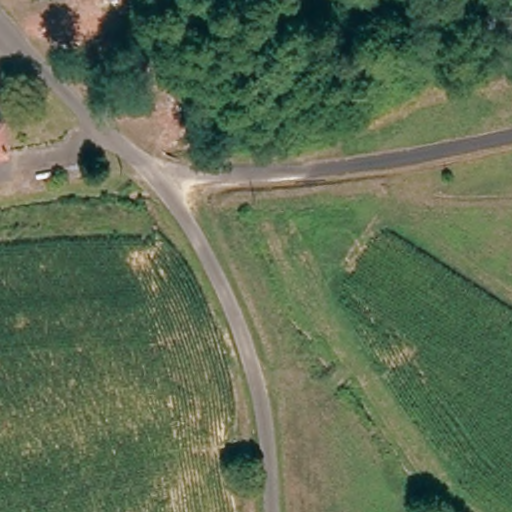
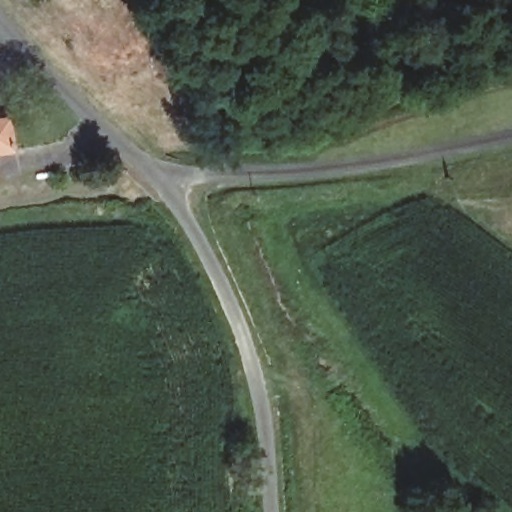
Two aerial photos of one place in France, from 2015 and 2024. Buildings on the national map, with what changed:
unchanged [(0,179),(0,123),(4,122),(13,177),(0,179)]

